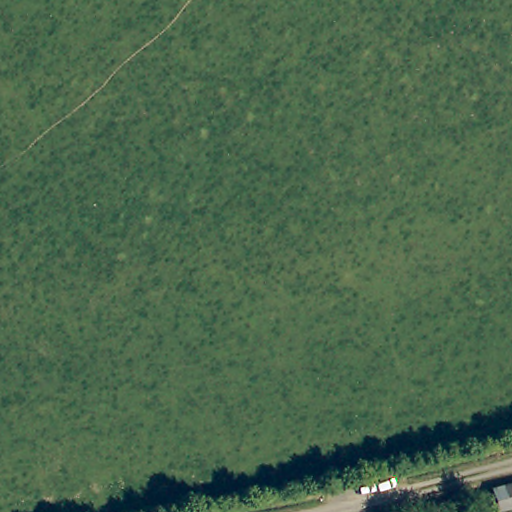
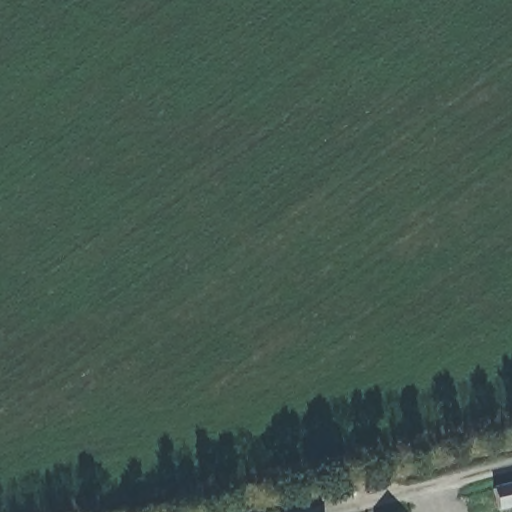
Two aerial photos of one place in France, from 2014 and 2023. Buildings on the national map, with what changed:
unchanged [(493,511),(487,491),(512,486),(512,508),(493,511)]

